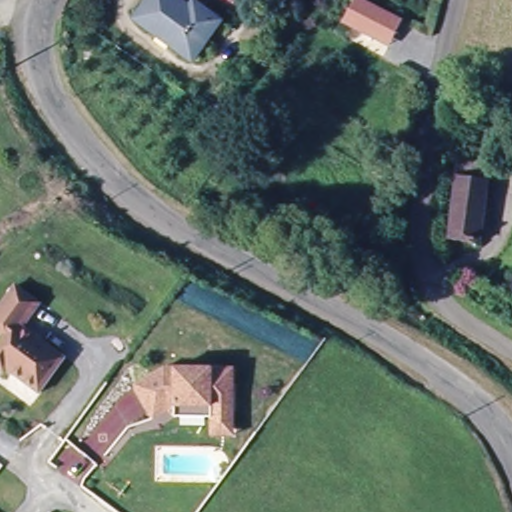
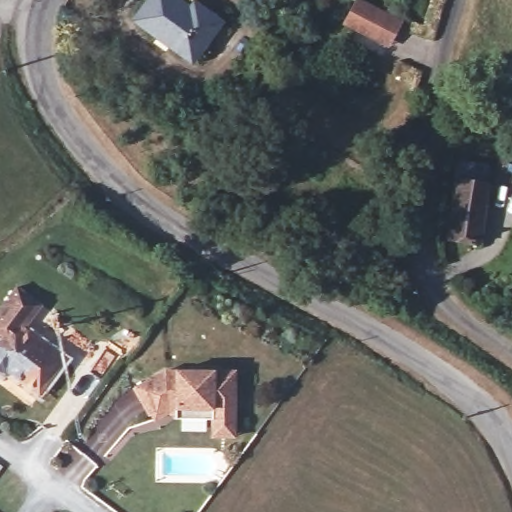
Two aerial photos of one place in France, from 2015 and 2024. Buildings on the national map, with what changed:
unchanged [(182,0),(187,4),(190,0),(199,0),(227,20),(194,65),(130,20),(145,0),(182,0)]
unchanged [(388,45),(376,40),(372,37),(361,32),(349,25),(360,3),(361,1),(388,15),(399,22),(388,45)]
unchanged [(458,168),(484,171),(483,194),(489,194),(485,252),(453,250),(458,168)]
unchanged [(43,305),(25,327),(66,360),(39,393),(8,370),(5,373),(0,369),(0,342),(4,337),(0,333),(0,311),(20,286),(43,305)]
unchanged [(213,433),(213,416),(178,416),(170,408),(155,417),(136,386),(166,367),(235,367),(235,416),(235,433),(213,433)]

